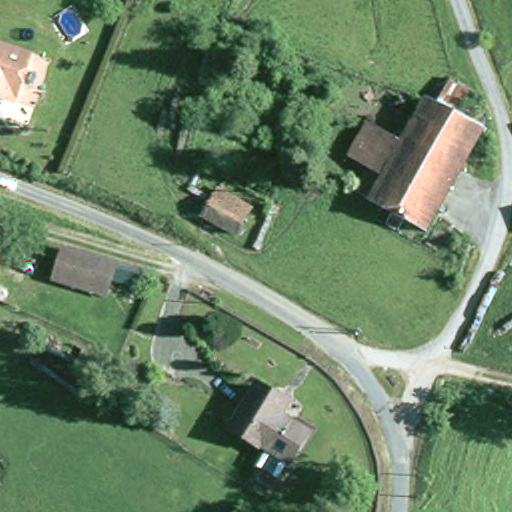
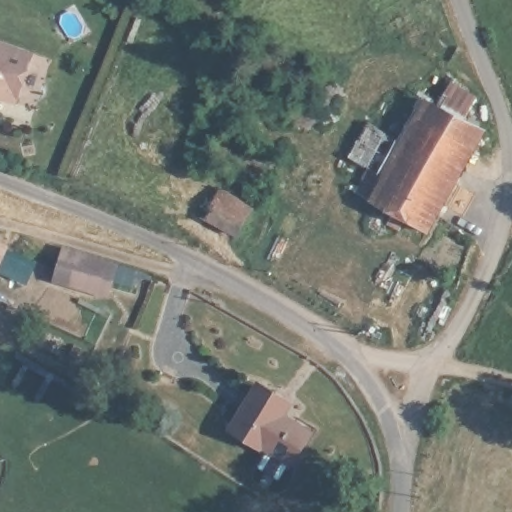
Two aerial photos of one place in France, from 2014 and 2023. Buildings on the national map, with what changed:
unchanged [(13,104),(0,100),(0,46),(28,55),(13,104)]
unchanged [(413,104),(473,130),(427,235),(406,225),(400,237),(388,231),(392,219),(368,206),(379,181),(394,146),(411,108),(413,104)]
unchanged [(379,181),(343,166),(358,130),(394,146),(379,181)]
unchanged [(211,196),(246,209),(238,231),(203,217),(211,196)]
unchanged [(135,275),(129,287),(110,281),(101,294),(45,272),(62,247),(135,275)]
unchanged [(0,251),(0,248),(1,249),(0,251)]
unchanged [(283,462),(226,430),(250,387),(269,397),(280,404),(275,414),(302,429),(283,462)]

